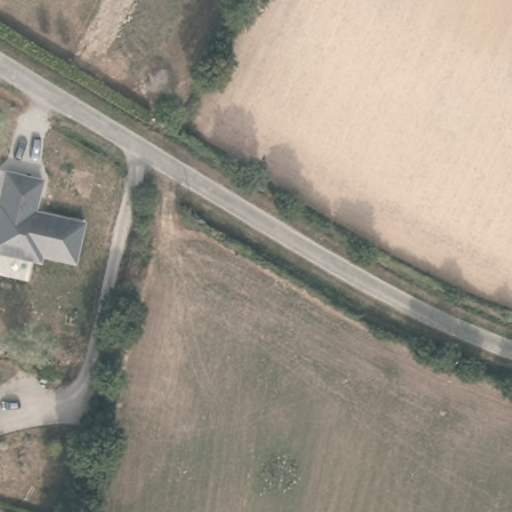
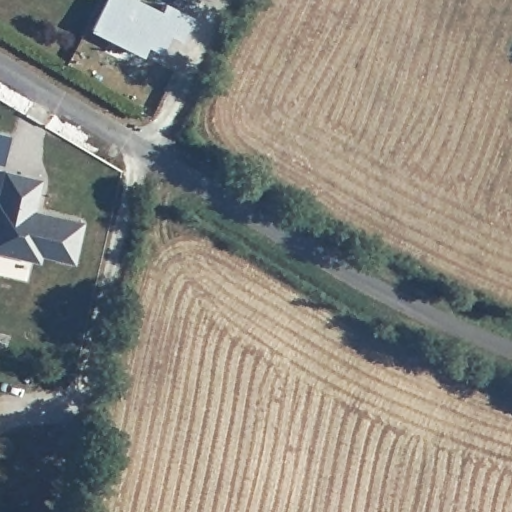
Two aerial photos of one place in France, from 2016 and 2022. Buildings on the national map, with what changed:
new [(107,0),(137,0),(162,13),(166,5),(192,18),(181,39),(170,34),(161,52),(148,45),(143,55),(92,29),(107,0)]
unchanged [(37,213),(83,222),(77,263),(42,254),(40,263),(0,255),(0,184),(2,171),(42,177),(37,213)]

